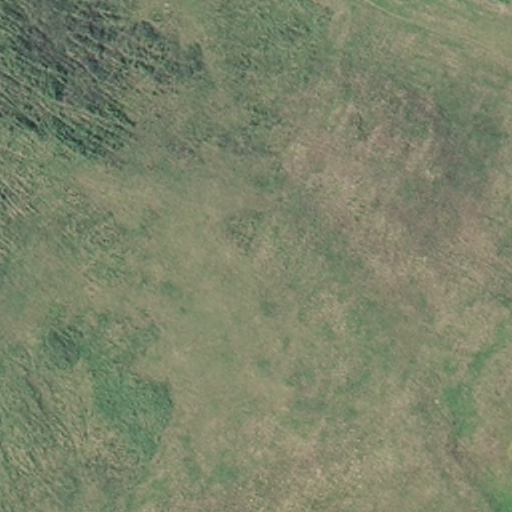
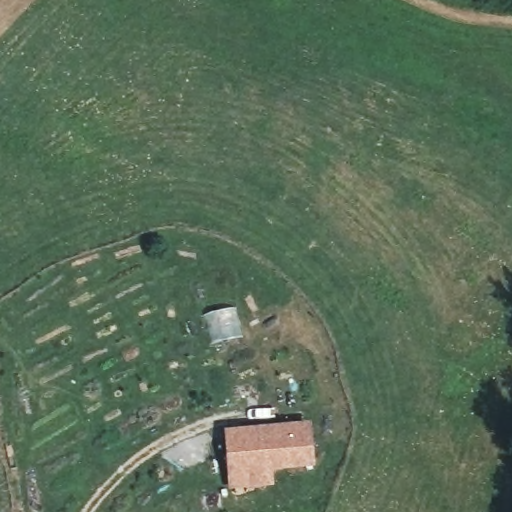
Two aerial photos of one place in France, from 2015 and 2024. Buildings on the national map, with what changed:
new [(310,422),(314,467),(272,471),(273,485),(227,488),(222,429),(310,422)]

